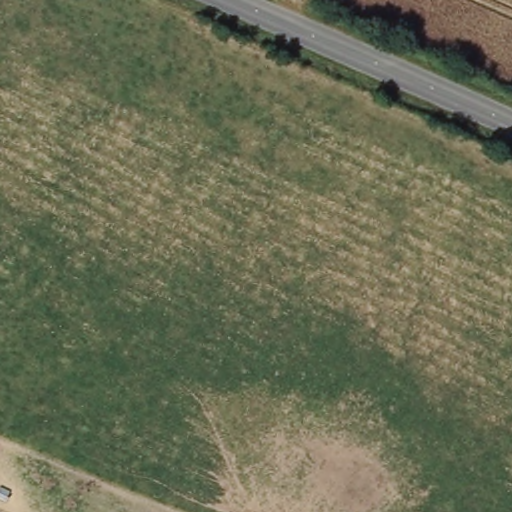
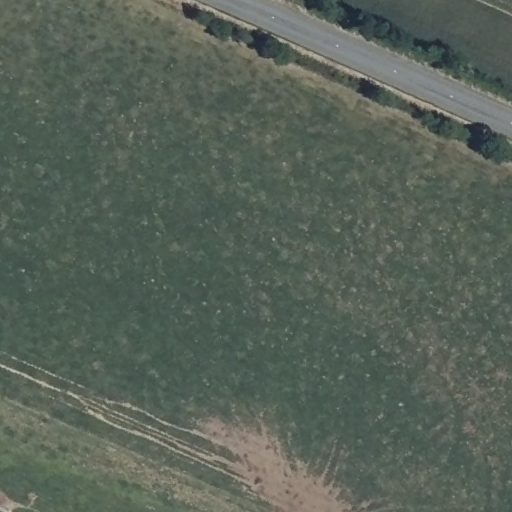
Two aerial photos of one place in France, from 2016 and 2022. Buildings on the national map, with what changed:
[]

